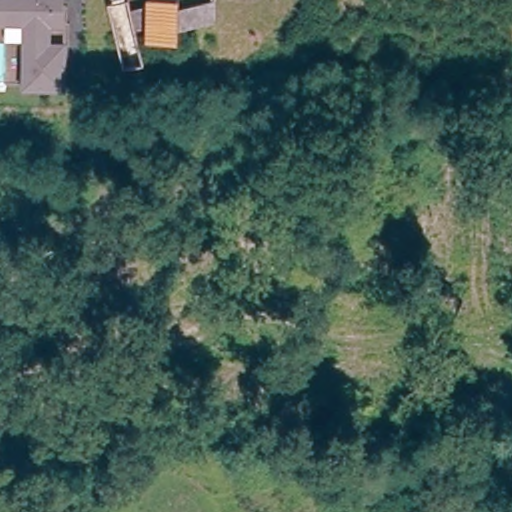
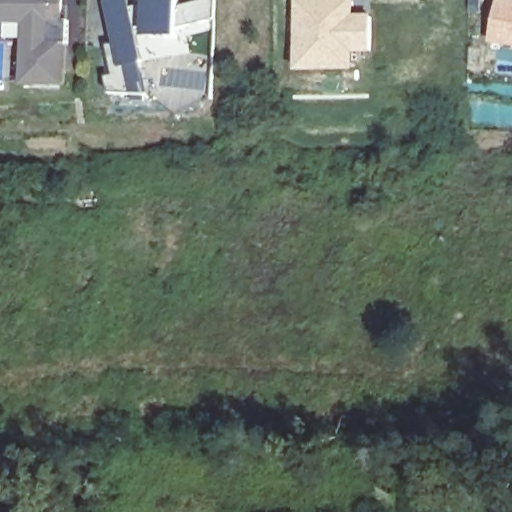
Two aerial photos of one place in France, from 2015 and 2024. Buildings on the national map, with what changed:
unchanged [(51,24),(51,44),(66,45),(65,86),(26,85),(27,24),(0,22),(1,0),(68,0),(67,24),(51,24)]
unchanged [(145,59),(125,64),(109,0),(131,0),(132,5),(149,1),(149,0),(180,0),(180,5),(197,0),(216,0),(215,16),(209,19),(180,26),(179,35),(154,35),(149,35),(149,23),(137,25),(145,59)]
new [(372,15),(373,54),(355,55),(355,71),(296,73),(295,0),(354,0),(355,15),(372,15)]
new [(512,0),(512,50),(490,46),(497,0),(512,0)]

